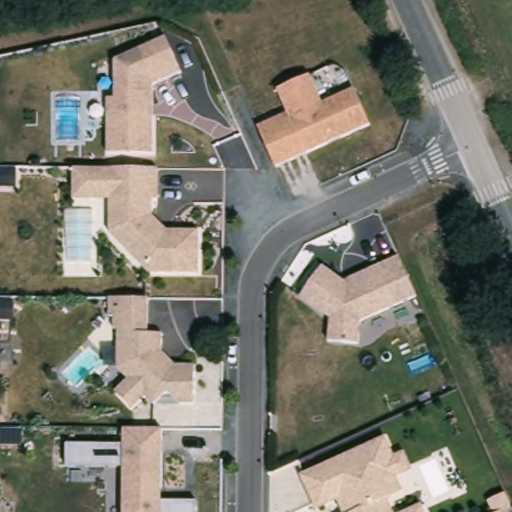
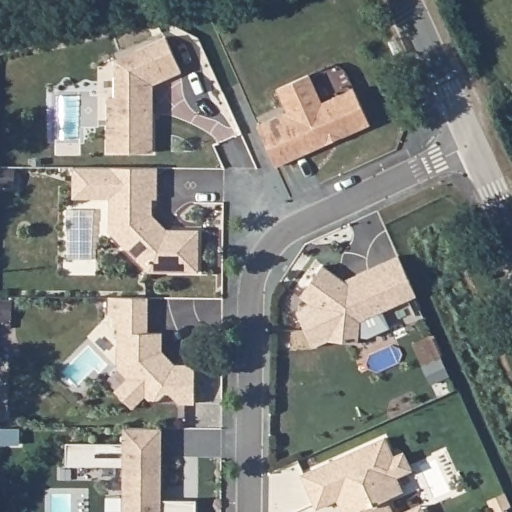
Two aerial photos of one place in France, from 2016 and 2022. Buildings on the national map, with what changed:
unchanged [(180,70),(154,82),(153,151),(108,152),(107,97),(116,97),(115,57),(167,35),(180,70)]
unchanged [(289,111),(278,87),(310,74),(323,101),(354,87),(370,122),(276,164),(259,123),(289,111)]
unchanged [(158,167),(158,194),(153,195),(152,214),(169,227),(199,227),(198,268),(147,268),(111,231),(111,196),(74,195),(75,170),(158,167)]
unchanged [(346,280),(399,255),(417,293),(361,320),(360,339),(330,337),(330,315),(301,296),(323,265),(346,280)]
unchanged [(148,296),(148,331),(164,332),(163,351),(175,362),(194,363),(192,402),(152,402),(145,395),(133,406),(116,389),(128,377),(119,367),(118,327),(114,327),(114,312),(109,313),(109,296),(148,296)]
unchanged [(195,512),(123,512),(123,468),(66,467),(66,445),(124,445),(124,429),(163,430),(162,502),(195,502),(195,512)]
unchanged [(387,436),(393,454),(404,451),(412,468),(399,473),(405,489),(390,495),(397,512),(347,512),(338,497),(316,508),(301,472),(387,436)]
unchanged [(512,505),(506,510),(507,512),(495,512),(490,500),(506,492),(512,505)]

